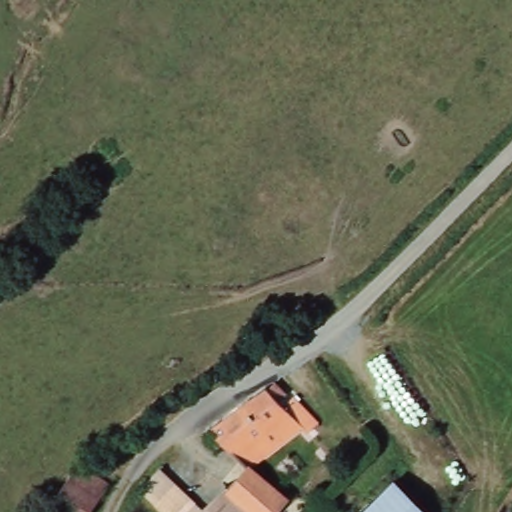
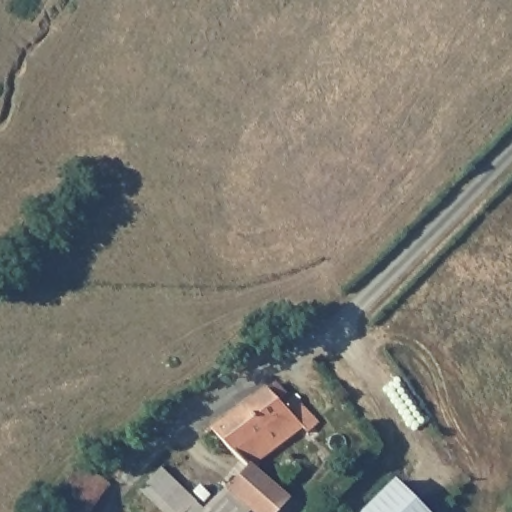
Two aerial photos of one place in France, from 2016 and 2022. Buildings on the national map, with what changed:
unchanged [(275,382),(286,391),(277,400),(283,405),(292,397),(317,420),(306,432),(300,426),(254,463),(207,427),(275,382)]
unchanged [(92,512),(46,512),(87,463),(114,484),(92,512)]
unchanged [(161,467),(202,509),(224,489),(247,465),(287,498),(276,512),(248,512),(247,511),(246,512),(160,512),(137,490),(161,467)]
unchanged [(387,486),(417,512),(365,512),(387,486)]

